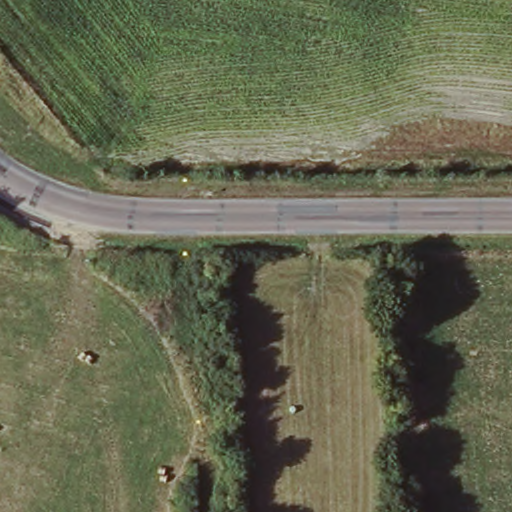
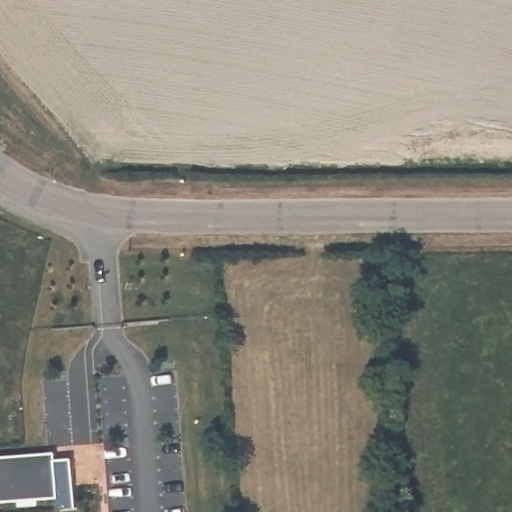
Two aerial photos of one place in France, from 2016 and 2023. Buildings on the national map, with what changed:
new [(56,458),(74,457),(79,508),(61,509),(59,497),(0,501),(0,455),(55,452),(56,458)]

